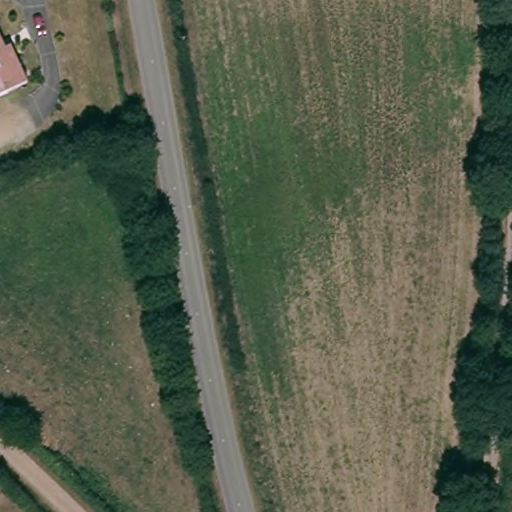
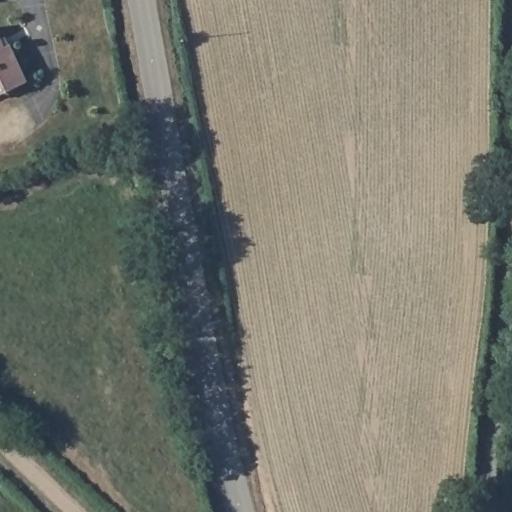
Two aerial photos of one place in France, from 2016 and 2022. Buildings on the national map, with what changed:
unchanged [(8,44),(13,41),(30,78),(0,92),(0,26),(8,44)]

